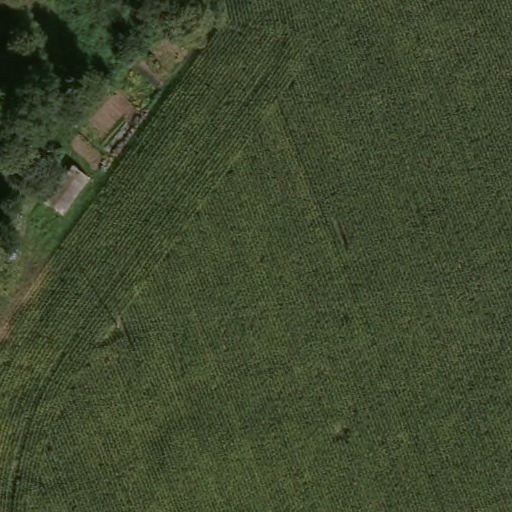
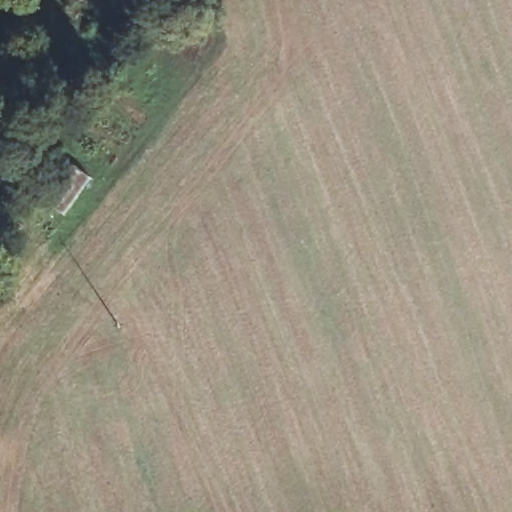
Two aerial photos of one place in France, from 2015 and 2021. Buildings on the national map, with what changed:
[]

